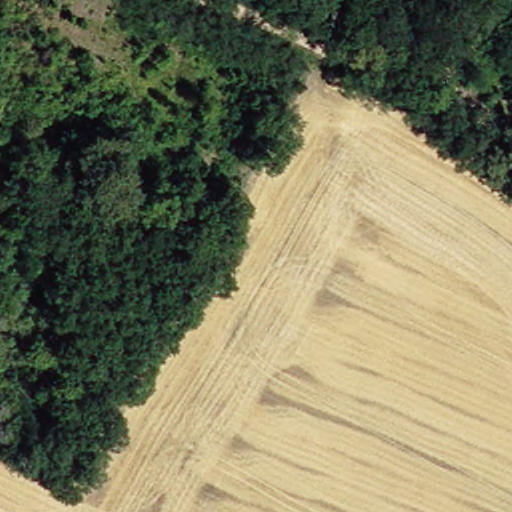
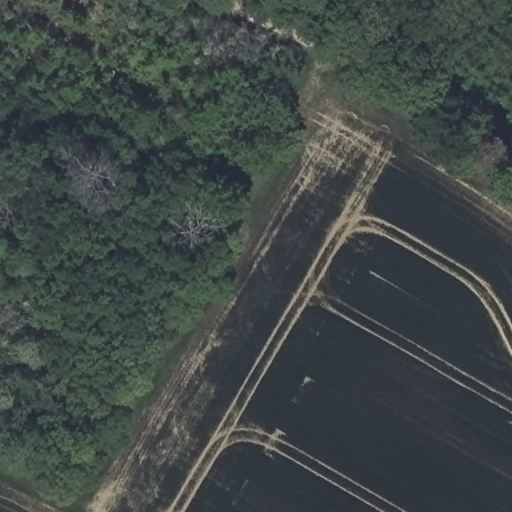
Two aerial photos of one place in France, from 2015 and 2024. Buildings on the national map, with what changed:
[]

